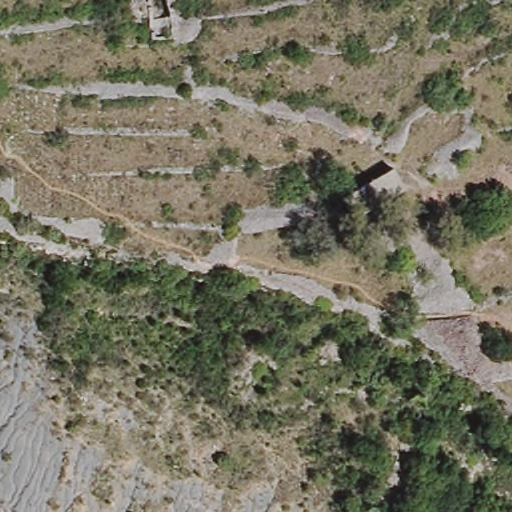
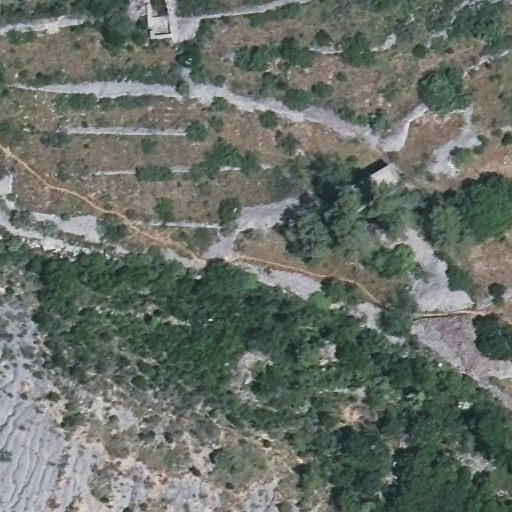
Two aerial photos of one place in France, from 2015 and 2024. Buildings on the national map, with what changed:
unchanged [(400,187),(348,218),(337,199),(391,165),(400,187)]

